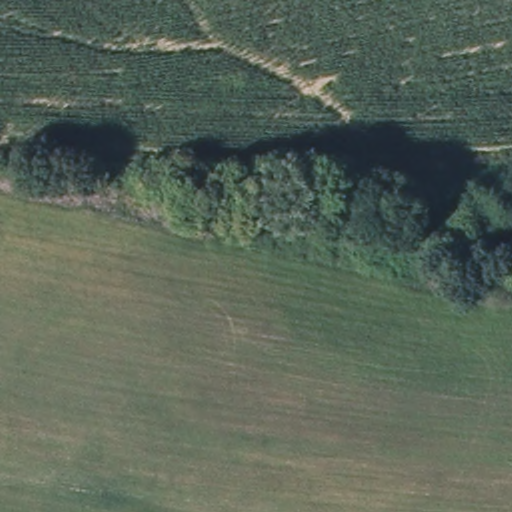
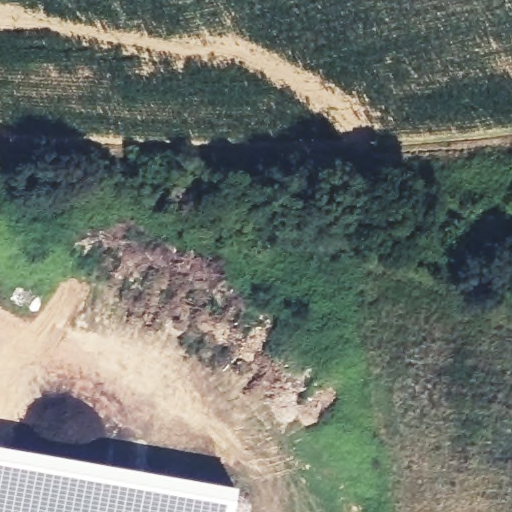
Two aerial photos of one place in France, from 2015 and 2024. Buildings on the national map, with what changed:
new [(0,512),(0,444),(236,485),(231,512),(0,512)]

